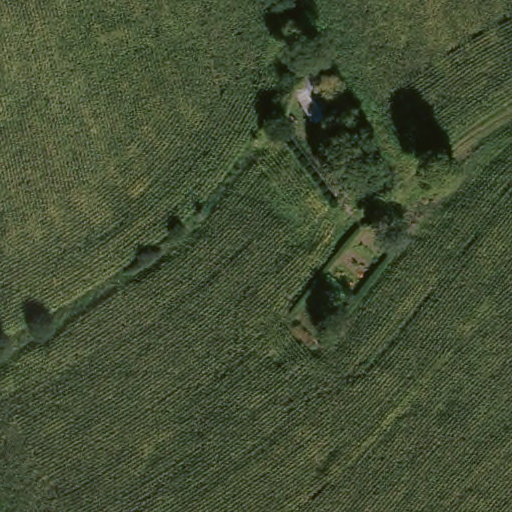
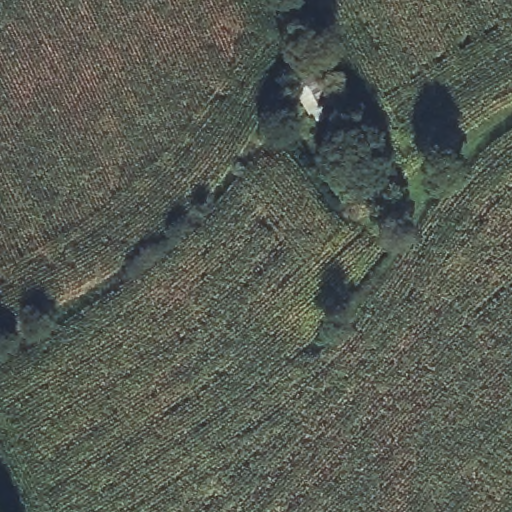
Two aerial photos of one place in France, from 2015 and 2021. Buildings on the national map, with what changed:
[]

